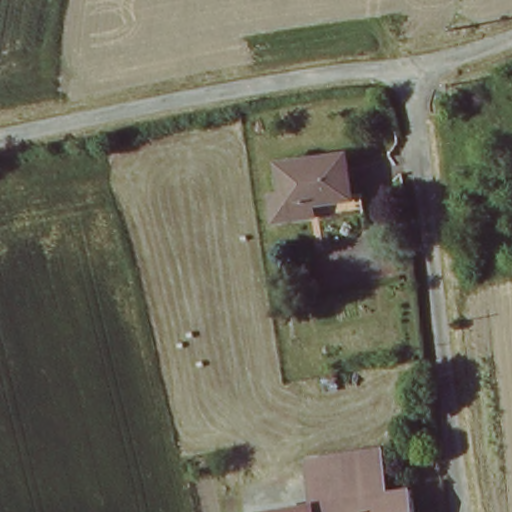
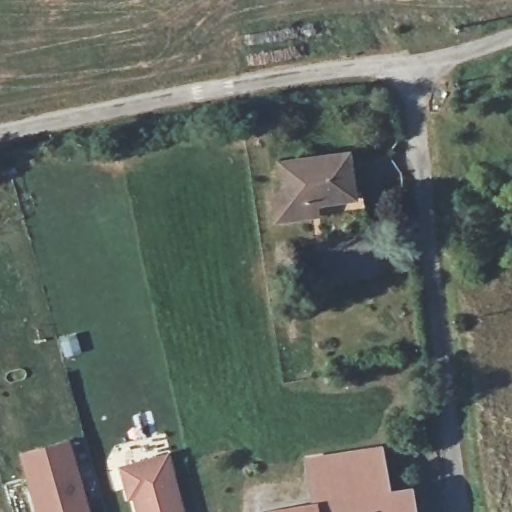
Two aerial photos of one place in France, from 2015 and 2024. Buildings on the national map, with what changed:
unchanged [(360,193),(363,211),(311,221),(310,217),(276,223),(273,199),(286,197),(281,165),(344,154),(350,195),(360,193)]
new [(89,512),(35,512),(18,451),(69,438),(89,512)]
unchanged [(378,448),(385,491),(409,487),(411,512),(262,512),(262,509),(311,501),(307,459),(378,448)]
new [(168,453),(184,512),(135,512),(131,499),(126,500),(118,466),(168,453)]

